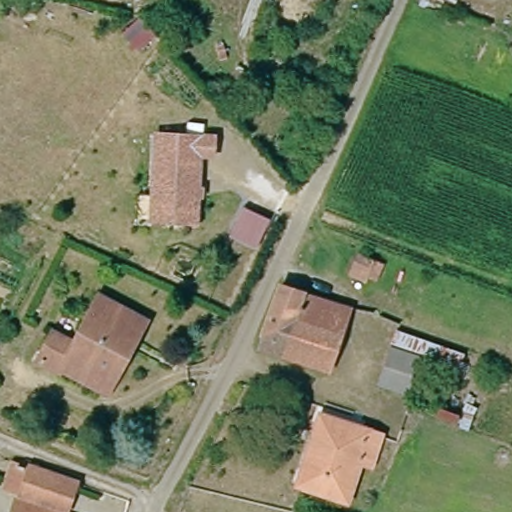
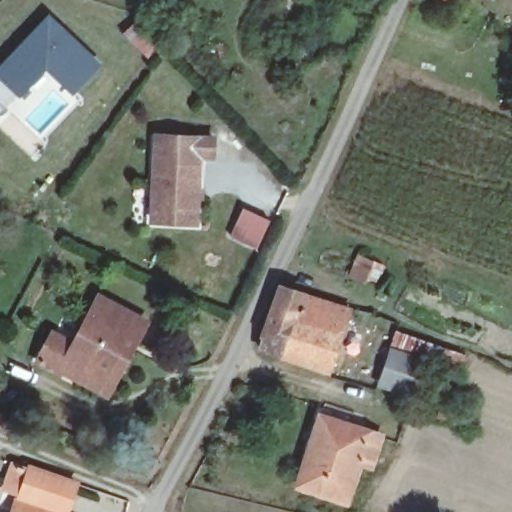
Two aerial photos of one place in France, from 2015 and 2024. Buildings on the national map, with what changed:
unchanged [(457,0),(455,6),(441,0),(457,0)]
new [(71,94),(46,70),(20,96),(16,94),(0,111),(0,63),(48,14),(101,65),(71,94)]
unchanged [(207,134),(207,150),(195,150),(193,217),(150,216),(151,133),(207,134)]
new [(249,211),(277,222),(265,250),(238,239),(249,211)]
unchanged [(371,286),(356,280),(363,258),(379,267),(371,286)]
unchanged [(325,370),(312,367),(276,354),(283,334),(263,328),(279,285),(298,293),(345,309),(325,370)]
unchanged [(56,369),(51,377),(31,364),(46,335),(68,347),(93,298),(140,325),(130,344),(101,397),(56,369)]
unchanged [(466,351),(455,380),(436,374),(425,370),(388,358),(399,327),(449,345),(466,351)]
unchanged [(394,389),(388,406),(373,400),(385,362),(423,376),(417,394),(415,398),(394,389)]
unchanged [(376,433),(370,461),(356,458),(346,499),(301,488),(316,421),(326,423),(371,432),(376,433)]
unchanged [(0,492),(0,488),(2,482),(11,485),(18,466),(74,487),(64,512),(58,512),(0,492)]
unchanged [(19,506),(35,512),(17,512),(19,506)]

